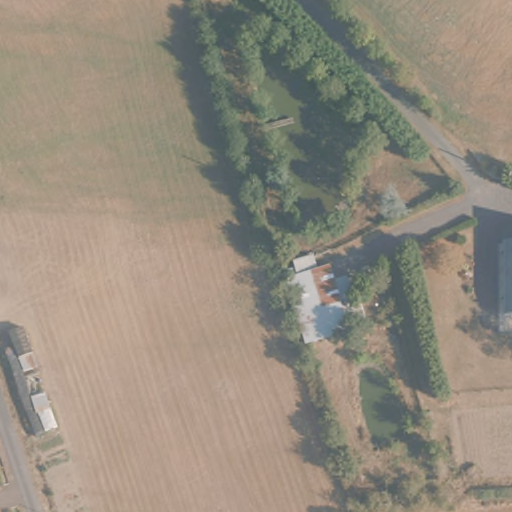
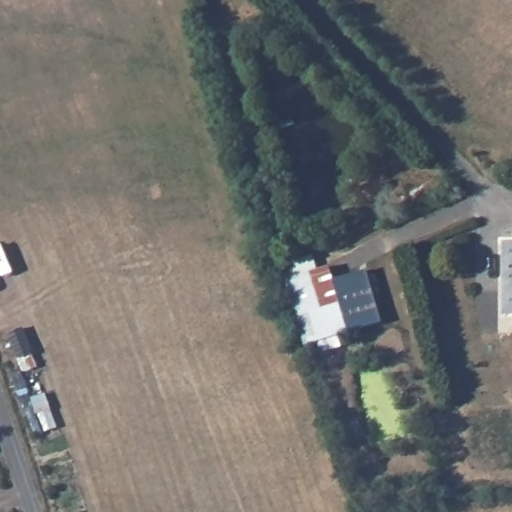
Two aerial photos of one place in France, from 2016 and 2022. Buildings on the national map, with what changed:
unchanged [(502,240),(508,240),(512,239),(512,319),(502,319),(502,301),(502,240)]
unchanged [(286,281),(332,268),(351,335),(304,348),(286,281)]
new [(367,270),(382,323),(350,332),(335,279),(367,270)]

